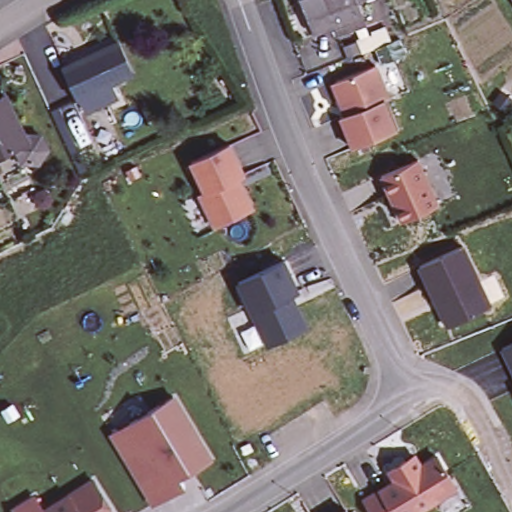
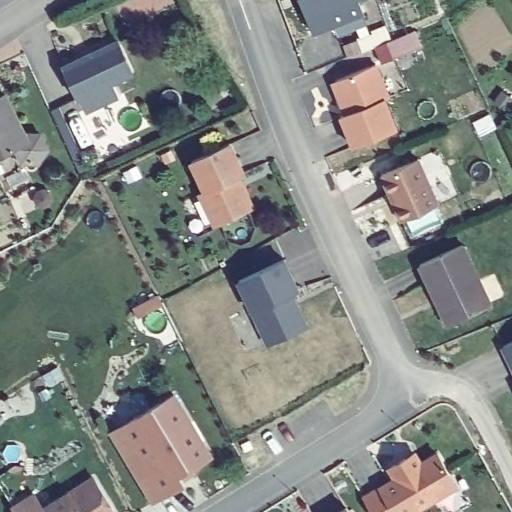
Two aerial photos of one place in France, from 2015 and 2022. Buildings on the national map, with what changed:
unchanged [(335,20),(316,27),(305,0),(327,0),(329,3),(336,0),(360,0),(362,6),(369,20),(339,31),(335,20)]
unchanged [(336,0),(329,3),(327,0),(336,0)]
unchanged [(97,110),(88,97),(86,98),(67,67),(117,37),(135,67),(117,78),(125,91),(97,110)]
unchanged [(335,84),(337,77),(376,59),(390,92),(386,94),(399,123),(356,143),(342,113),(347,110),(341,97),(335,84)]
unchanged [(0,95),(8,91),(27,129),(41,130),(47,145),(37,156),(26,160),(19,144),(6,150),(8,154),(0,158),(0,95)]
unchanged [(252,207),(218,224),(203,192),(208,190),(194,160),(234,143),(248,173),(242,176),(247,188),(254,202),(252,207)]
unchanged [(417,158),(437,202),(400,219),(379,175),(417,158)]
unchanged [(465,242),(492,302),(450,322),(422,262),(465,242)]
unchanged [(290,298),(295,312),(302,332),(262,347),(239,281),(286,264),(297,296),(290,298)]
unchanged [(512,342),(512,367),(503,346),(512,342)]
unchanged [(177,395),(214,457),(182,476),(186,486),(153,504),(110,432),(177,395)]
unchanged [(364,494),(398,474),(402,475),(419,465),(417,463),(439,451),(450,470),(457,482),(435,495),(406,512),(374,512),(364,494)]
unchanged [(37,493),(45,506),(94,477),(116,512),(13,512),(11,508),(37,493)]
unchanged [(350,512),(341,512),(348,508),(350,512)]

